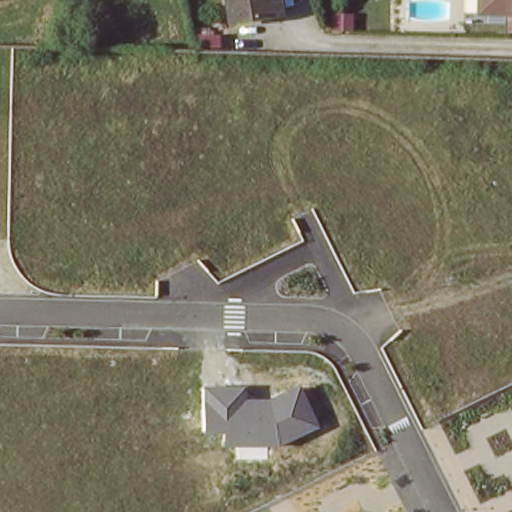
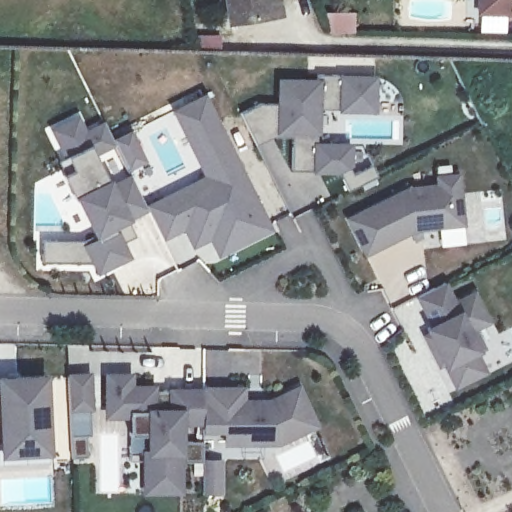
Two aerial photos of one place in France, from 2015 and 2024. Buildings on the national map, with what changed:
unchanged [(277,14),(223,20),(221,0),(275,0),(277,14)]
unchanged [(479,11),(479,0),(512,0),(512,14),(479,11)]
new [(340,171),(294,170),(294,137),(275,136),(259,145),(243,113),(262,103),(282,104),(283,81),(319,82),(319,74),(346,75),(345,78),(376,79),(376,106),(375,111),(343,110),(320,110),(319,145),(351,147),(351,171),(353,176),(374,165),(380,177),(351,191),(345,180),(340,171)]
new [(206,179),(173,111),(209,94),(275,232),(221,261),(211,244),(194,251),(184,233),(164,243),(148,209),(206,179)]
new [(44,263),(44,240),(59,241),(85,242),(98,236),(80,199),(76,201),(64,176),(74,171),(55,132),(78,120),(86,135),(106,125),(116,144),(96,154),(113,188),(133,178),(148,209),(128,219),(134,232),(120,239),(129,258),(100,273),(96,264),(59,263),(44,263)]
new [(116,144),(134,135),(148,164),(131,173),(116,144)]
new [(413,243),(408,232),(363,254),(346,219),(406,189),(436,186),(435,178),(456,176),(461,224),(419,229),(421,238),(413,243)]
new [(426,328),(431,325),(416,296),(443,282),(453,302),(473,292),(487,321),(472,328),(482,347),(474,351),(484,371),(455,386),(444,362),(438,365),(426,341),(424,336),(429,334),(426,328)]
new [(49,456),(0,459),(0,377),(45,373),(49,456)]
new [(88,384),(89,416),(68,417),(66,385),(88,384)]
new [(143,461),(147,461),(147,445),(128,445),(128,425),(105,425),(105,421),(105,384),(128,384),(128,396),(151,396),(151,405),(161,405),(161,400),(201,400),(201,440),(201,472),(178,472),(178,497),(178,501),(143,501),(143,497),(143,461)]
unchanged [(201,400),(201,398),(241,398),(241,415),(256,415),(298,399),(313,438),(274,453),(223,453),(223,440),(201,440),(201,400)]

